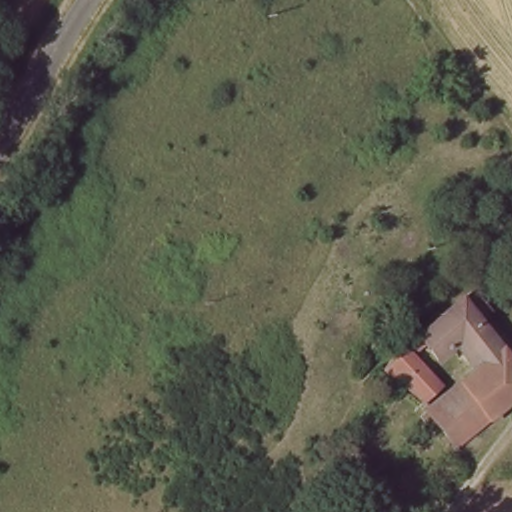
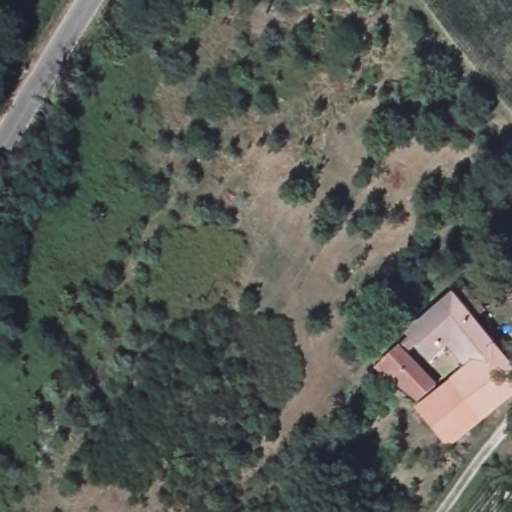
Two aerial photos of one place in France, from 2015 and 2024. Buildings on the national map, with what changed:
unchanged [(448,441),(415,410),(462,366),(442,342),(425,358),(407,337),(455,288),(474,310),(465,320),(512,375),(512,389),(448,441)]
unchanged [(405,401),(377,376),(373,370),(392,351),(423,385),(405,401)]

